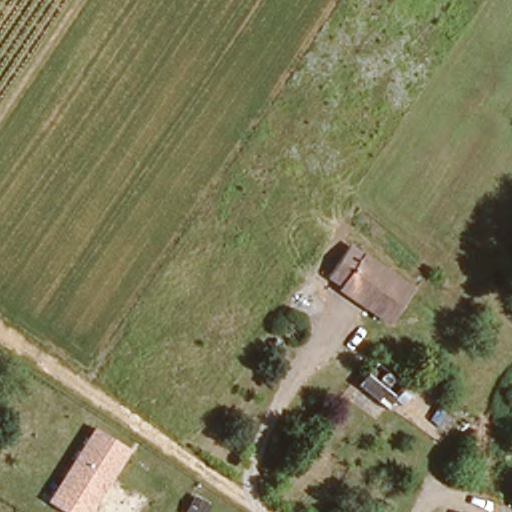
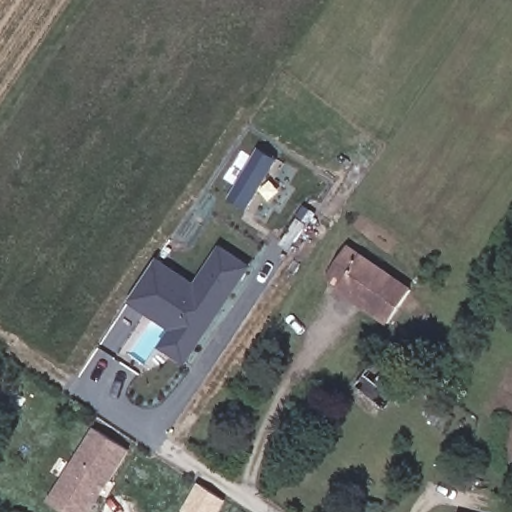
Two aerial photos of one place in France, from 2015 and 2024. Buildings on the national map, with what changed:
new [(169,331),(128,302),(156,260),(195,283),(224,246),(254,266),(185,362),(160,347),(169,331)]
unchanged [(340,285),(328,276),(348,247),(412,290),(389,324),(361,304),(338,288),(340,285)]
unchanged [(348,397),(357,386),(375,363),(380,367),(384,361),(387,357),(398,365),(395,368),(390,375),(405,387),(386,410),(376,420),(348,397)]
unchanged [(402,412),(415,397),(420,402),(410,418),(402,412)]
unchanged [(124,452),(89,512),(66,512),(48,502),(93,430),(124,452)]

